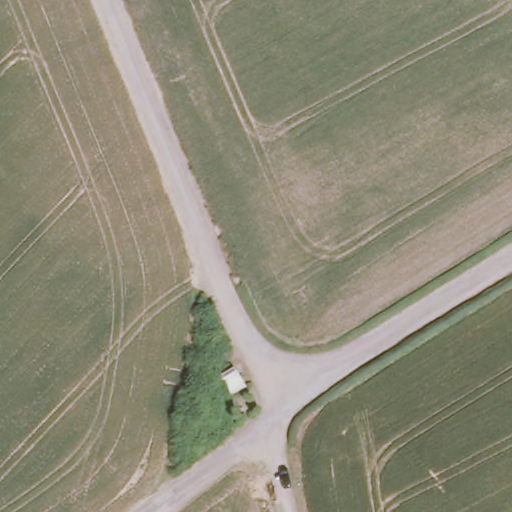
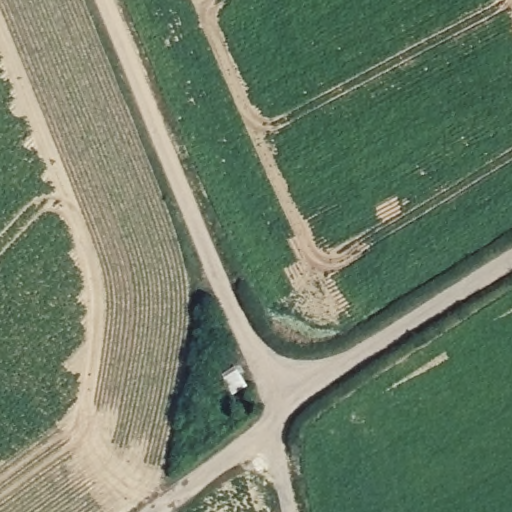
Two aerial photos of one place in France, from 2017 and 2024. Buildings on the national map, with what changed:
unchanged [(213,373),(230,363),(245,385),(228,395),(213,373)]

